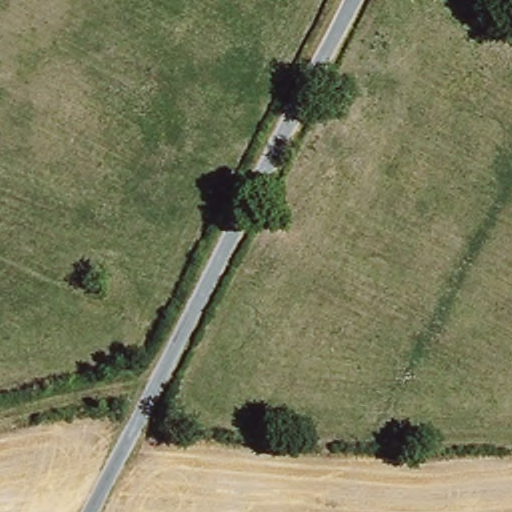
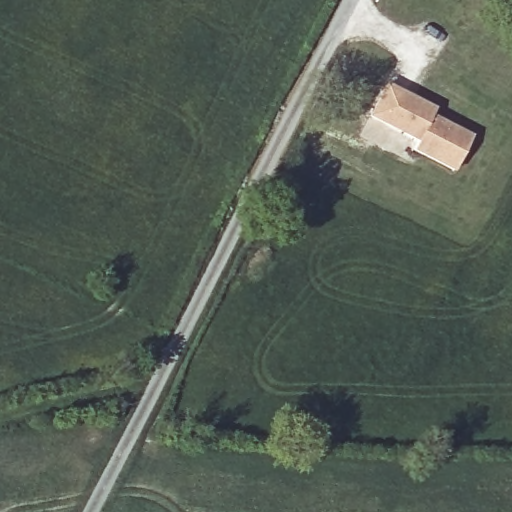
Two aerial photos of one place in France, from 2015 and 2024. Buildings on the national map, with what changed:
new [(436,109),(432,116),(473,136),(455,173),(412,152),(417,141),(368,117),(385,83),(436,109)]

